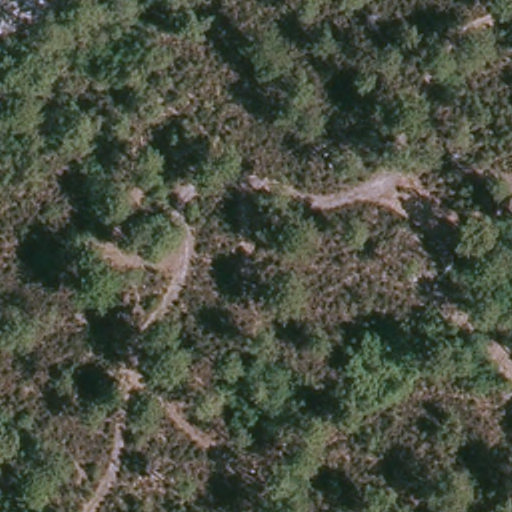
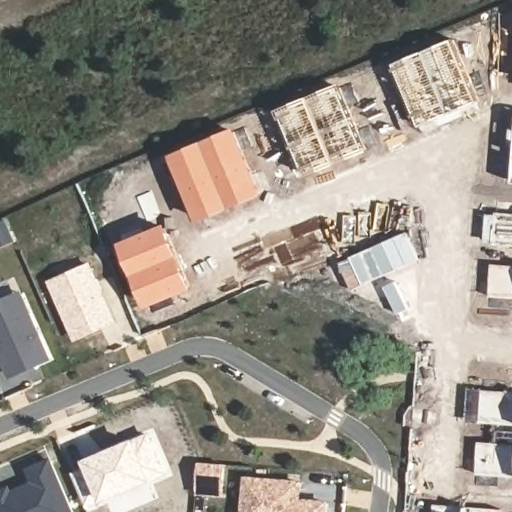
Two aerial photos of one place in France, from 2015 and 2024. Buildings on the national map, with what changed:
new [(483,100),(486,109),(427,134),(424,125),(422,125),(396,64),(457,39),(483,100)]
new [(346,83),(373,150),(307,175),(279,110),(346,83)]
new [(237,128),(266,195),(202,221),(173,155),(237,128)]
new [(497,214),(498,210),(512,212),(512,246),(496,245),(497,242),(486,241),(488,214),(497,214)]
new [(169,224),(197,288),(148,307),(122,242),(169,224)]
new [(493,296),(493,263),(512,264),(512,298),(493,296)]
new [(112,320),(75,336),(51,282),(88,265),(112,320)]
new [(0,353),(0,301),(3,300),(20,293),(27,311),(49,357),(10,375),(0,353)]
new [(470,387),(512,391),(512,477),(478,474),(480,440),(495,441),(497,423),(469,421),(470,387)]
new [(150,432),(167,474),(102,504),(84,460),(150,432)]
new [(1,512),(0,511),(0,493),(10,489),(12,493),(35,483),(30,470),(51,460),(73,512),(1,512)]
new [(197,491),(197,482),(199,462),(224,464),(222,485),(222,493),(197,491)]
new [(12,493),(10,489),(34,479),(35,483),(12,493)]
new [(300,483),(297,501),(326,503),(325,512),(243,512),(247,479),(300,483)]
new [(505,512),(436,512),(437,502),(506,510),(505,512)]

